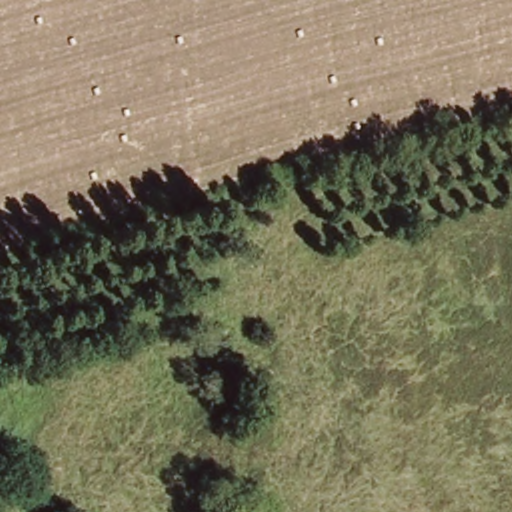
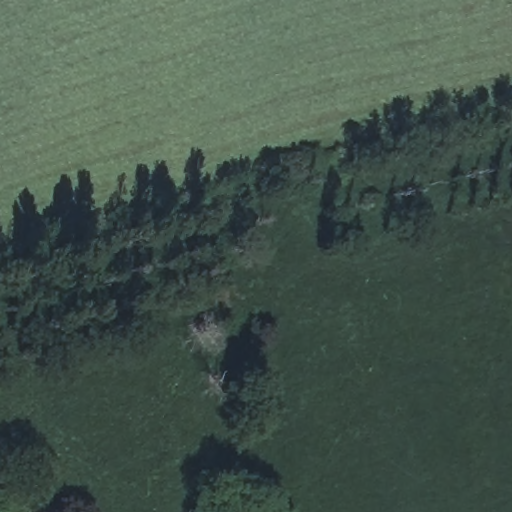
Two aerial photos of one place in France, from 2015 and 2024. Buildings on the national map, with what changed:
[]

